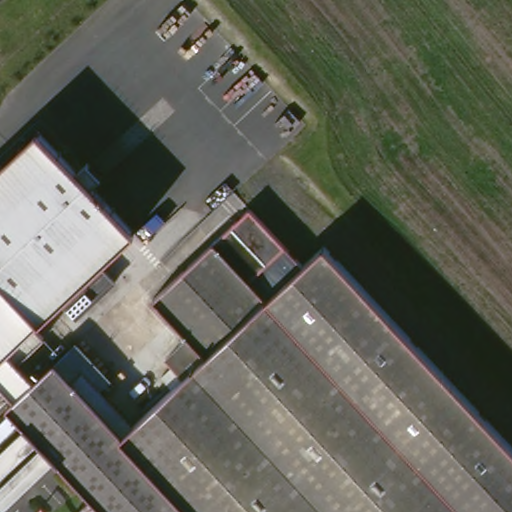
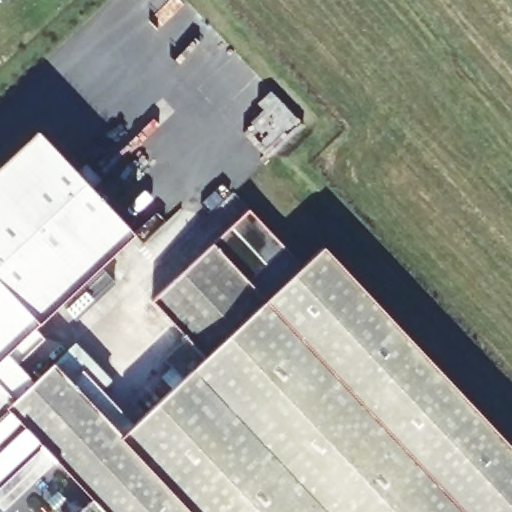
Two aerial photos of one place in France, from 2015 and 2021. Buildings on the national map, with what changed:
unchanged [(310,265),(332,246),(512,450),(512,512),(81,512),(85,508),(5,417),(3,415),(11,407),(0,393),(0,179),(44,141),(80,182),(91,172),(104,188),(94,197),(133,242),(29,333),(40,346),(11,371),(29,391),(47,376),(49,377),(64,396),(114,452),(126,442),(189,386),(167,361),(183,347),(149,308),(261,210),(310,265)]
unchanged [(103,280),(114,292),(74,327),(63,315),(103,280)]
unchanged [(76,385),(126,442),(114,452),(64,396),(76,385)]

